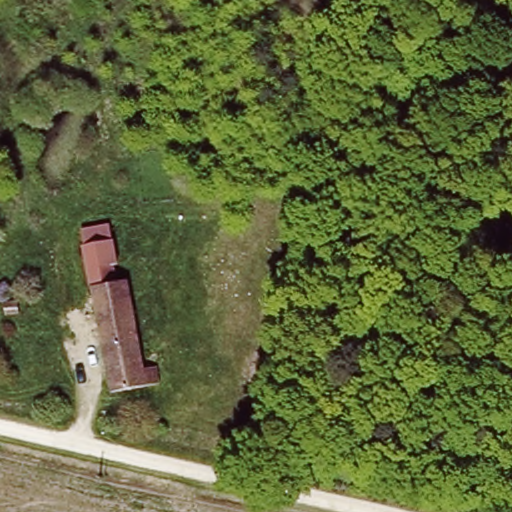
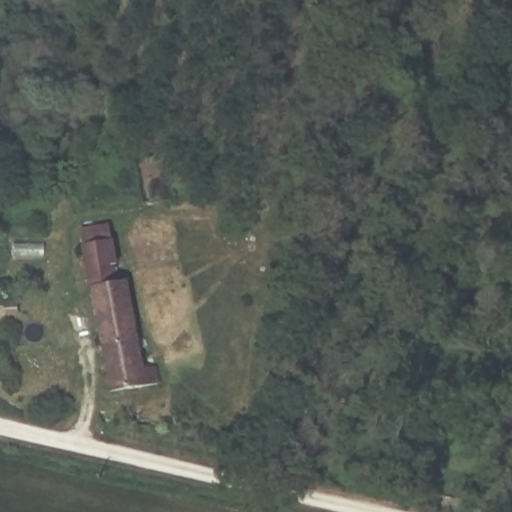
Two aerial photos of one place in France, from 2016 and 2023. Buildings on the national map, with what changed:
unchanged [(125,284),(139,343),(150,341),(160,385),(115,395),(79,232),(110,225),(117,262),(112,264),(117,286),(125,284)]
unchanged [(56,294),(59,307),(23,313),(20,300),(56,294)]

